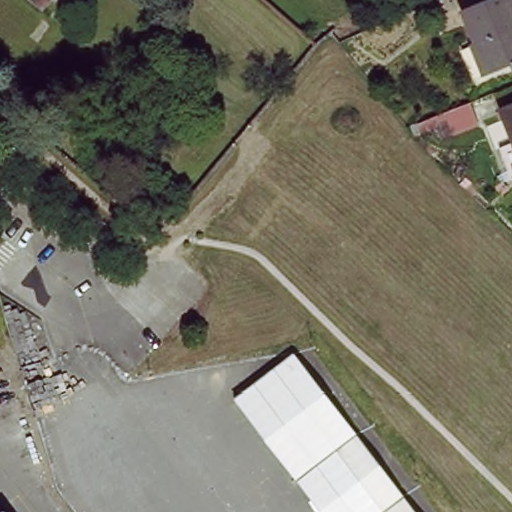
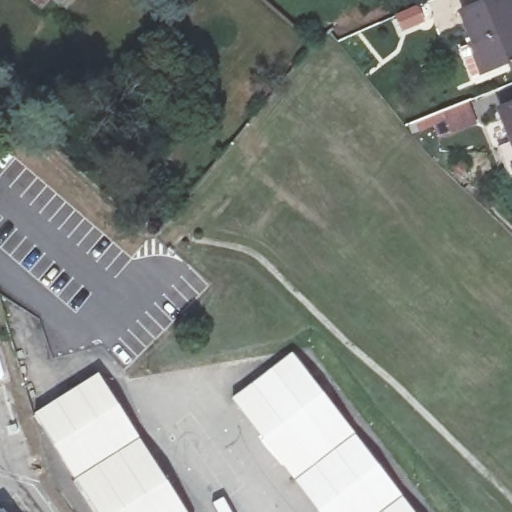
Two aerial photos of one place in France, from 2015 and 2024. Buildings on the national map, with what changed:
unchanged [(29,0),(59,0),(45,15),(29,0)]
unchanged [(512,67),(481,80),(456,20),(509,0),(511,0),(512,4),(512,32),(511,33),(512,35),(512,67)]
unchanged [(512,111),(512,150),(498,117),(512,111)]
unchanged [(295,354),(417,512),(320,512),(234,400),(295,354)]
new [(188,512),(95,512),(34,416),(100,375),(188,512)]
unchanged [(5,512),(0,512),(0,511),(3,509),(5,512)]

